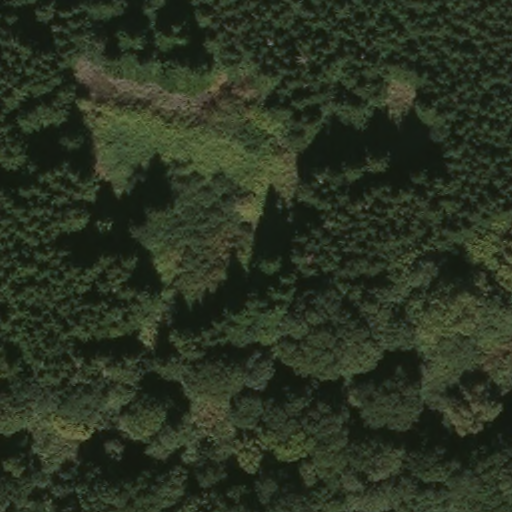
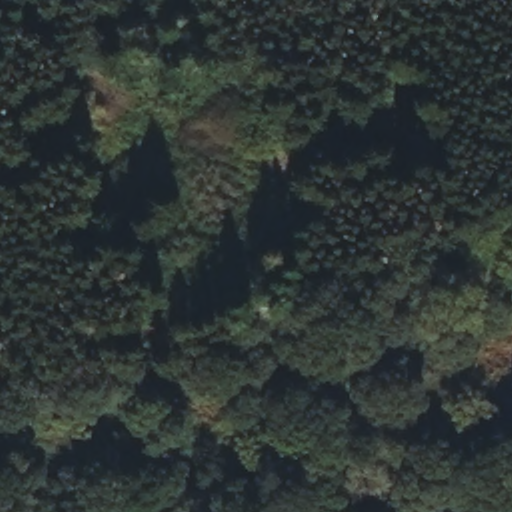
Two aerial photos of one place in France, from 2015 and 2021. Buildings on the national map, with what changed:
[]

